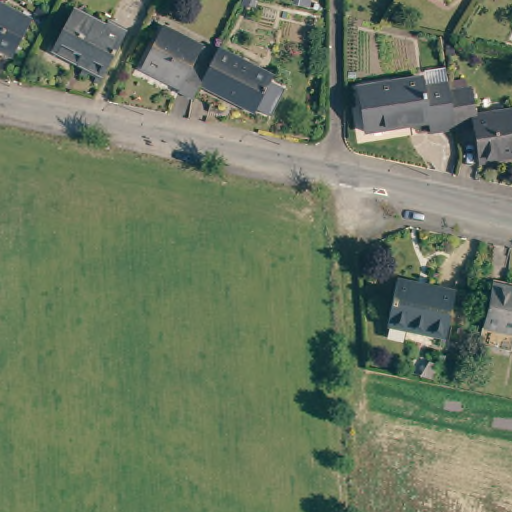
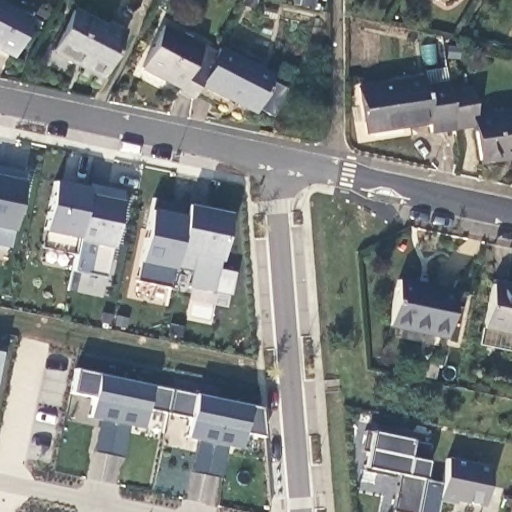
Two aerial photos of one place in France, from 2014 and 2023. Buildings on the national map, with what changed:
unchanged [(17,52),(0,44),(0,0),(8,0),(36,15),(17,52)]
unchanged [(100,76),(82,66),(84,61),(54,46),(74,6),(104,21),(106,17),(125,26),(100,76)]
unchanged [(177,87),(179,84),(141,64),(164,21),(203,42),(192,63),(206,70),(201,81),(193,95),(177,87)]
unchanged [(273,71),(254,108),(201,81),(206,70),(219,45),(273,71)]
unchanged [(420,123),(418,113),(356,123),(349,79),(412,69),(414,77),(439,74),(440,84),(445,119),(420,123)]
unchanged [(459,80),(464,106),(512,100),(512,147),(502,149),(500,144),(469,150),(464,116),(445,119),(440,84),(459,80)]
new [(25,173),(9,248),(0,246),(0,167),(25,173)]
new [(54,182),(71,186),(72,182),(89,185),(74,255),(40,248),(54,182)]
new [(74,255),(89,185),(123,193),(105,278),(71,271),(74,255)]
new [(152,199),(187,206),(174,267),(169,289),(135,281),(152,199)]
new [(187,206),(229,215),(213,292),(188,287),(191,270),(174,267),(187,206)]
unchanged [(456,293),(446,338),(388,326),(396,281),(456,293)]
unchanged [(512,331),(484,325),(492,286),(512,290),(512,331)]
new [(147,386),(259,408),(263,440),(244,435),(239,450),(225,446),(219,478),(191,472),(196,440),(186,437),(191,420),(145,410),(141,428),(125,425),(121,457),(93,450),(98,420),(89,417),(92,398),(72,394),(76,370),(147,386)]
new [(484,506),(456,501),(455,505),(439,501),(437,512),(391,512),(399,475),(364,468),(372,431),(412,440),(431,443),(427,462),(423,480),(440,482),(447,457),(491,467),(484,506)]

